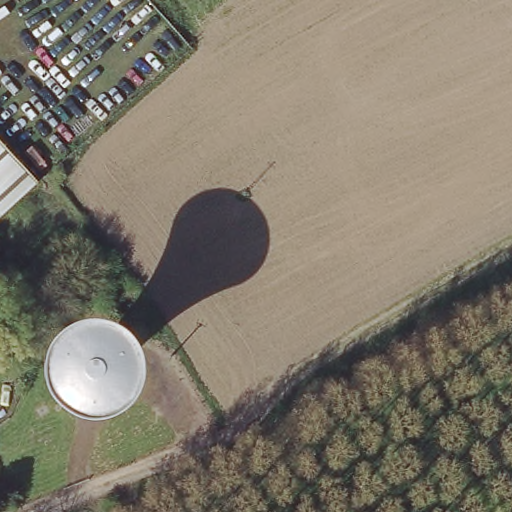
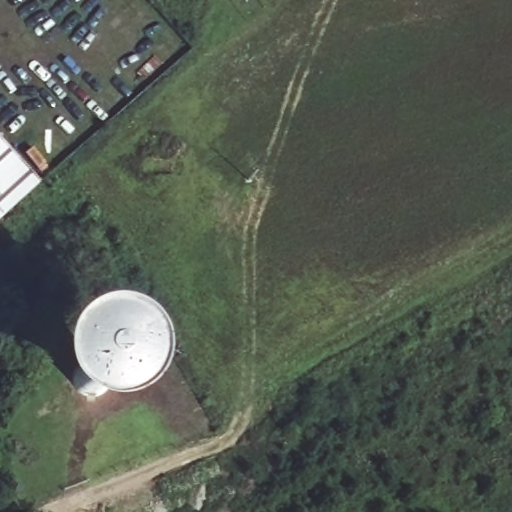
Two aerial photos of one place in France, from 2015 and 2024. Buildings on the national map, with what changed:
unchanged [(0,143),(40,185),(0,224),(0,143)]

